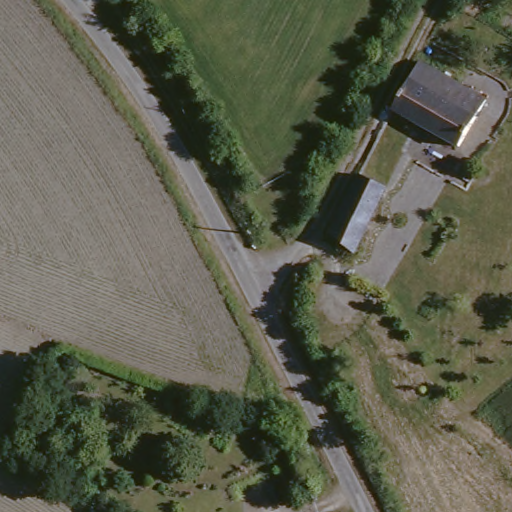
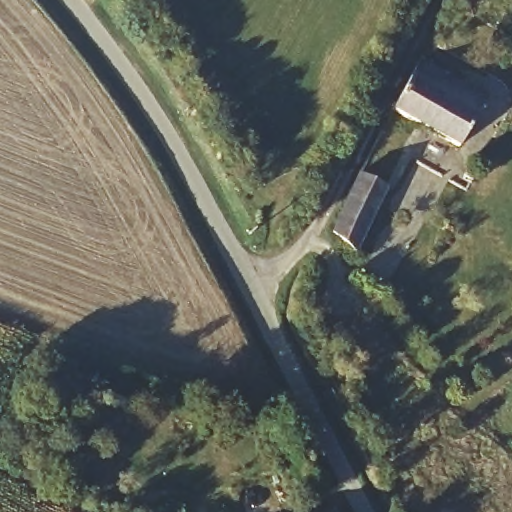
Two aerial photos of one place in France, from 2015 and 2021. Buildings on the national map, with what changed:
unchanged [(391,113),(414,63),(420,65),(455,83),(482,96),(459,145),(391,113)]
unchanged [(356,175),(386,189),(363,258),(327,233),(356,175)]

